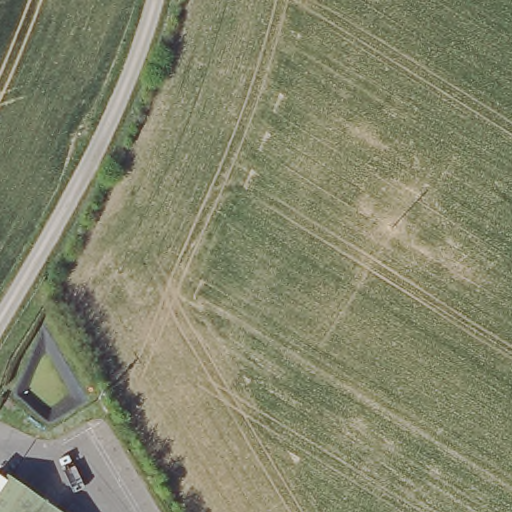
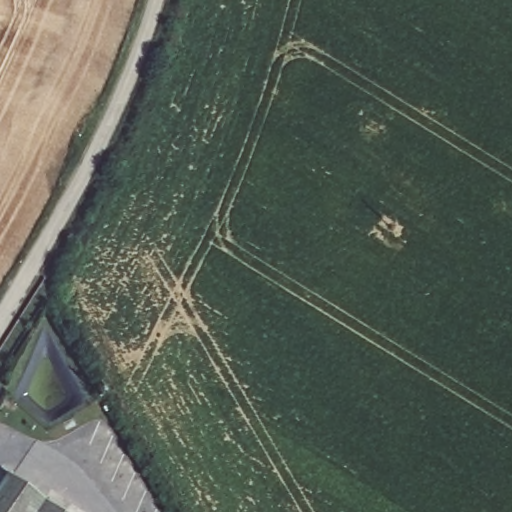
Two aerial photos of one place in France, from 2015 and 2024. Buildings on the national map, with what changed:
unchanged [(0,512),(0,490),(10,476),(63,512),(0,512)]

